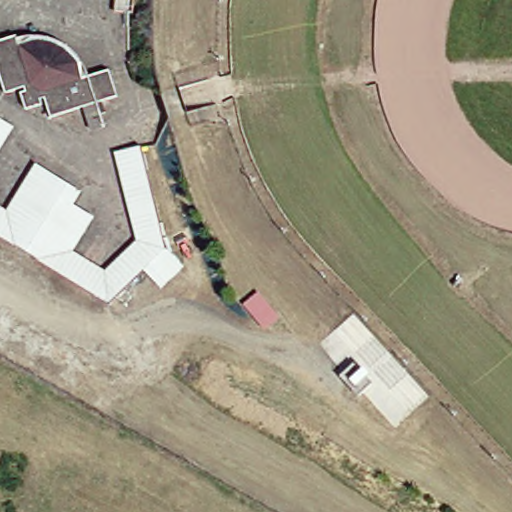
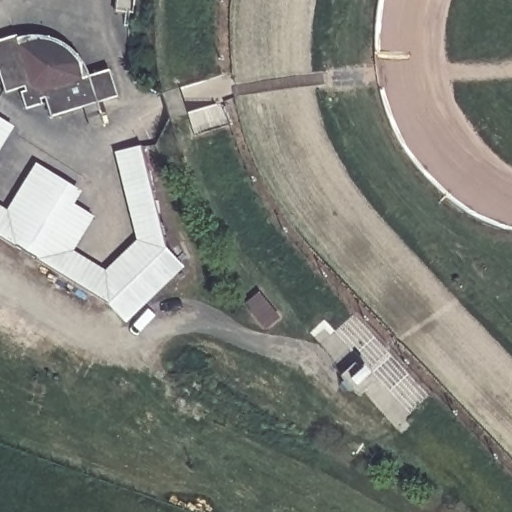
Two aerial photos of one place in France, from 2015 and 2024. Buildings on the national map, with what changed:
unchanged [(112,10),(114,0),(132,0),(131,12),(112,10)]
unchanged [(96,107),(91,108),(95,120),(83,124),(76,100),(41,111),(36,92),(32,94),(32,99),(16,104),(11,88),(16,86),(15,81),(0,86),(0,33),(7,30),(10,39),(22,37),(30,37),(38,39),(44,40),(50,43),(54,46),(59,49),(62,54),(66,59),(69,64),(71,67),(72,70),(72,73),(81,71),(99,65),(108,90),(92,95),(96,107)]
unchanged [(139,261),(106,298),(31,258),(62,199),(85,211),(66,247),(101,266),(131,232),(121,142),(147,139),(158,239),(176,254),(156,276),(139,261)]
unchanged [(26,163),(49,175),(42,188),(10,247),(0,241),(0,211),(26,163)]
unchanged [(62,199),(31,258),(10,247),(42,188),(62,199)]

